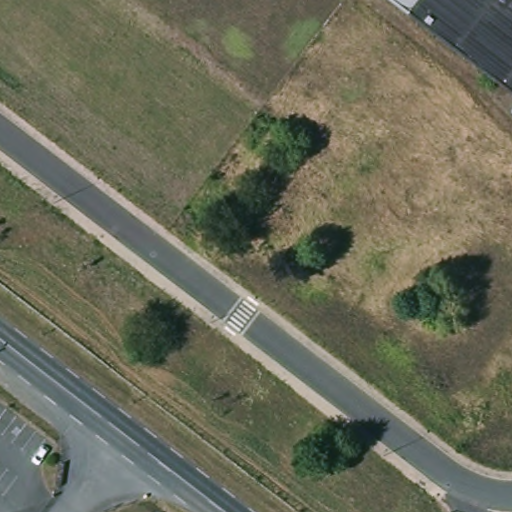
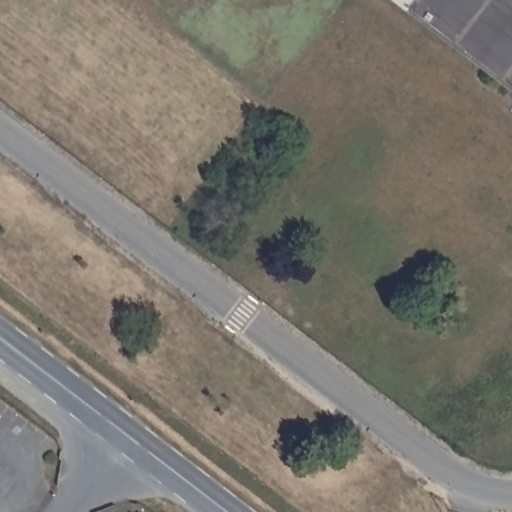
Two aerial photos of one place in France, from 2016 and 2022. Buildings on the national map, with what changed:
unchanged [(512,0),(512,88),(395,0),(512,0)]

